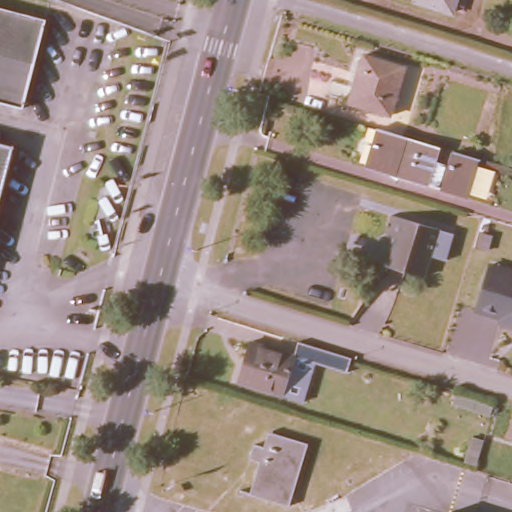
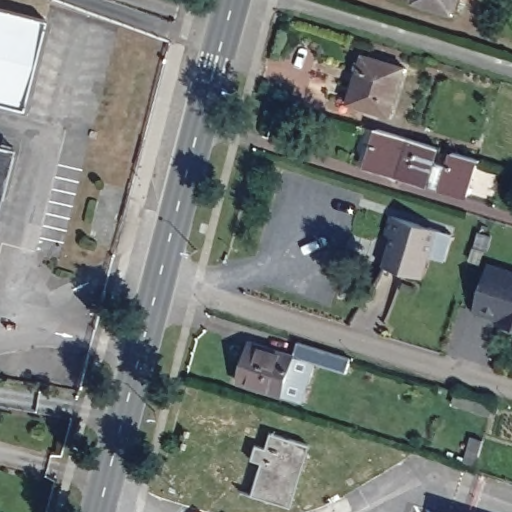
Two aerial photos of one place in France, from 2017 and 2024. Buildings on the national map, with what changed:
unchanged [(415,0),(456,0),(452,13),(415,1),(415,0)]
unchanged [(20,104),(0,98),(0,4),(42,15),(20,104)]
unchanged [(348,104),(363,54),(405,68),(390,116),(348,104)]
unchanged [(462,194),(365,166),(371,148),(367,146),(372,129),(412,141),(472,159),(462,194)]
unchanged [(0,183),(0,138),(10,141),(0,183)]
unchanged [(393,229),(388,227),(393,209),(438,223),(425,265),(423,272),(383,260),(385,254),(393,229)]
unchanged [(478,314),(488,264),(512,270),(512,322),(478,314)]
unchanged [(236,386),(248,347),(292,361),(296,348),(335,360),(331,375),(291,363),(280,400),(236,386)]
unchanged [(493,404),(490,414),(452,402),(455,392),(493,404)]
unchanged [(248,488),(258,457),(248,454),(253,439),(263,442),(268,427),(307,440),(288,502),(248,488)]
unchanged [(482,439),(474,464),(463,461),(471,436),(482,439)]
unchanged [(447,508),(460,512),(446,512),(447,508)]

